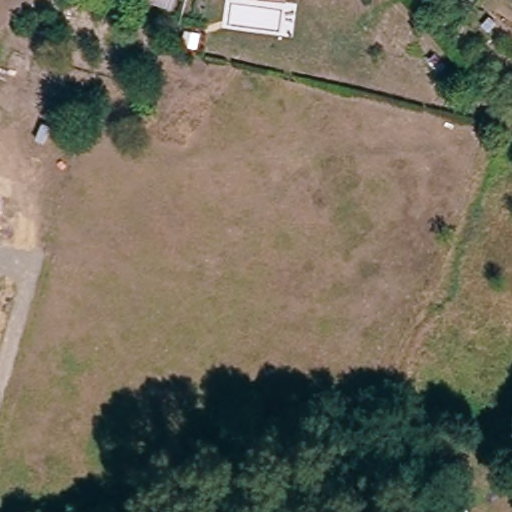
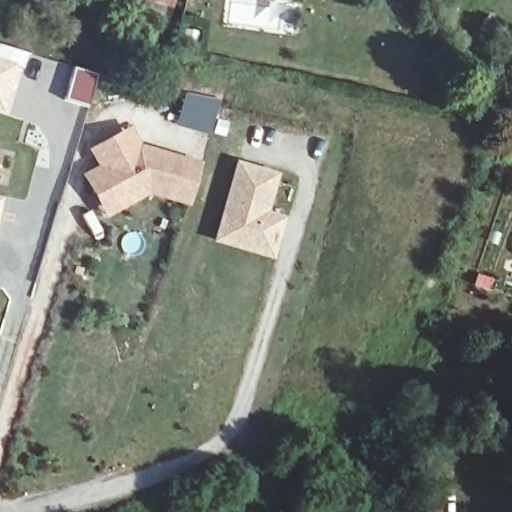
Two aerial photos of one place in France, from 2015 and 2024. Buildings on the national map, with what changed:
new [(174,9),(142,0),(176,0),(174,9)]
unchanged [(278,2),(266,0),(278,0),(278,2)]
new [(28,52),(23,70),(16,67),(3,112),(0,111),(0,44),(28,52)]
new [(149,194),(106,218),(84,176),(99,166),(89,149),(133,125),(143,145),(204,161),(191,205),(149,194)]
new [(213,241),(237,161),(281,173),(270,212),(287,217),(274,261),(213,241)]
new [(4,198),(0,215),(0,197),(4,198)]

